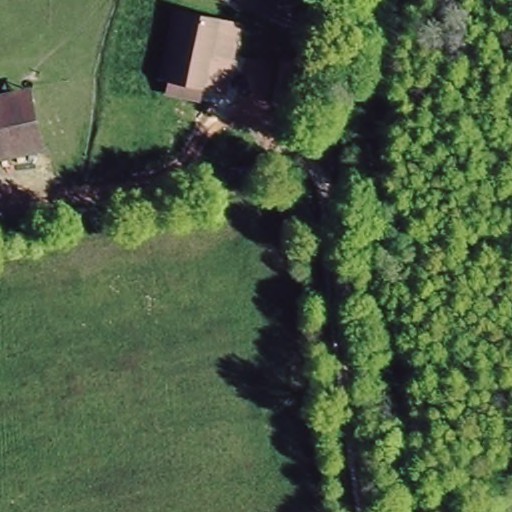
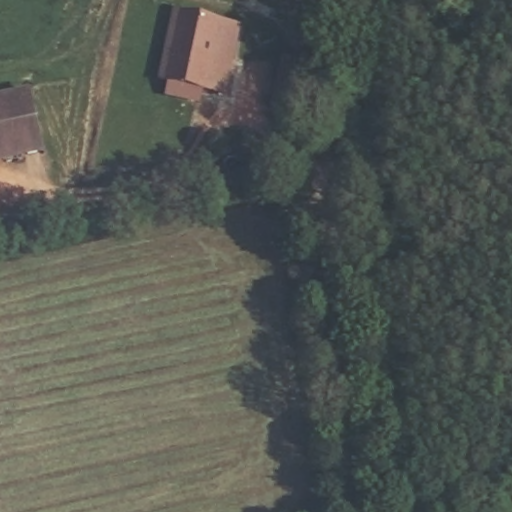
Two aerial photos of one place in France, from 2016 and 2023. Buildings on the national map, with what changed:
unchanged [(172,9),(225,18),(210,92),(203,89),(200,103),(196,102),(166,97),(168,82),(157,81),(172,9)]
unchanged [(326,71),(315,115),(286,108),(298,64),(326,71)]
unchanged [(45,147),(0,154),(0,116),(38,110),(45,147)]

